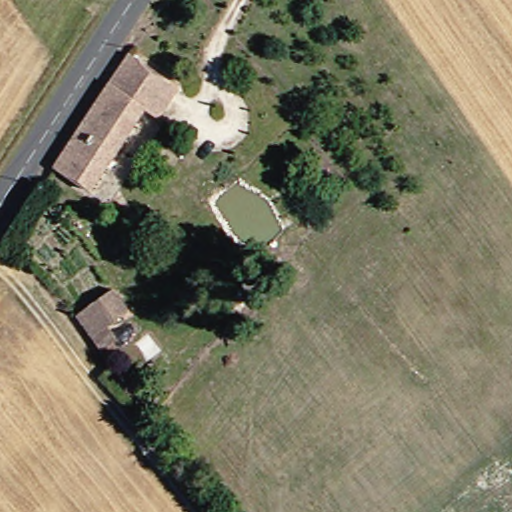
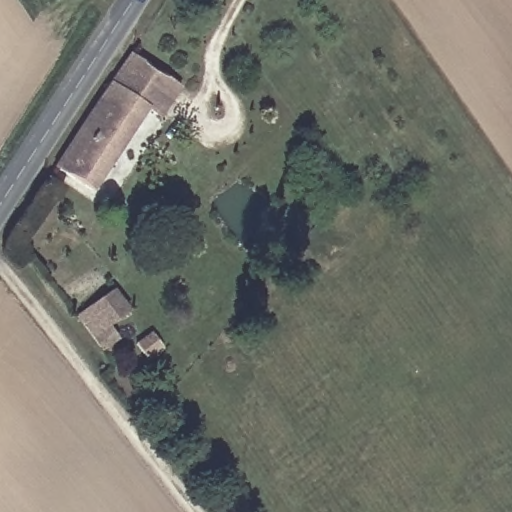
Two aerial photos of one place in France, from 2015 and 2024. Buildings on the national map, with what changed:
unchanged [(154,113),(145,129),(132,119),(77,204),(39,180),(113,64),(163,98),(154,113)]
unchanged [(114,286),(127,305),(121,309),(127,318),(116,326),(107,313),(99,320),(112,340),(98,351),(75,317),(114,286)]

